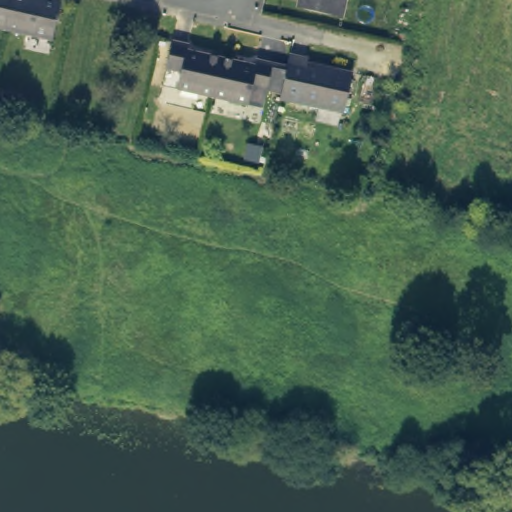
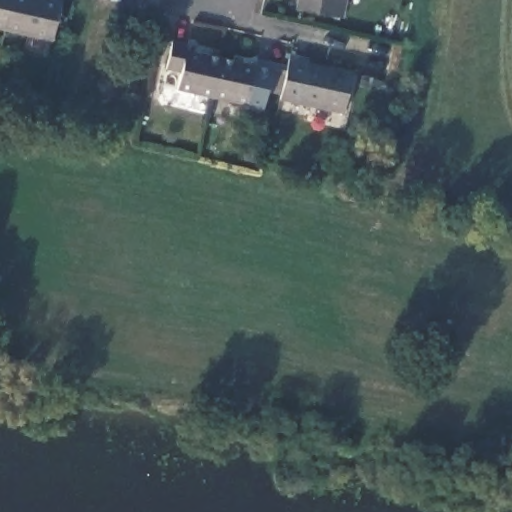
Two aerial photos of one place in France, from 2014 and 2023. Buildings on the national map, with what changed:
unchanged [(0,0),(16,0),(8,33),(0,31),(0,0)]
unchanged [(53,43),(8,33),(16,0),(48,0),(61,3),(53,43)]
unchanged [(297,11),(299,0),(345,0),(341,19),(297,11)]
unchanged [(176,93),(180,73),(164,70),(170,43),(186,46),(184,54),(219,61),(210,100),(176,93)]
unchanged [(313,61),(311,68),(353,76),(344,119),(282,106),(292,58),(313,61)]
unchanged [(254,68),(255,63),(269,66),(264,92),(249,89),(246,107),(210,100),(219,61),(254,68)]

